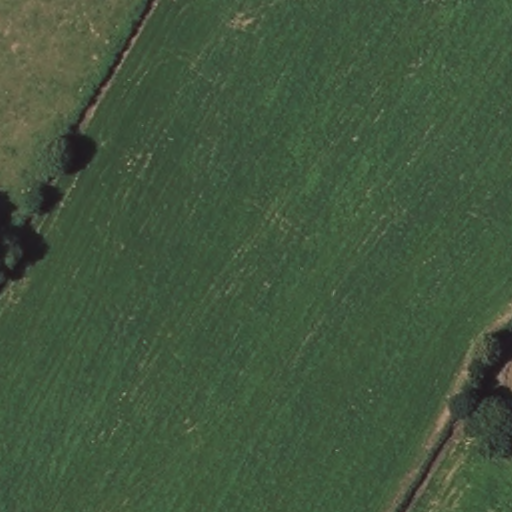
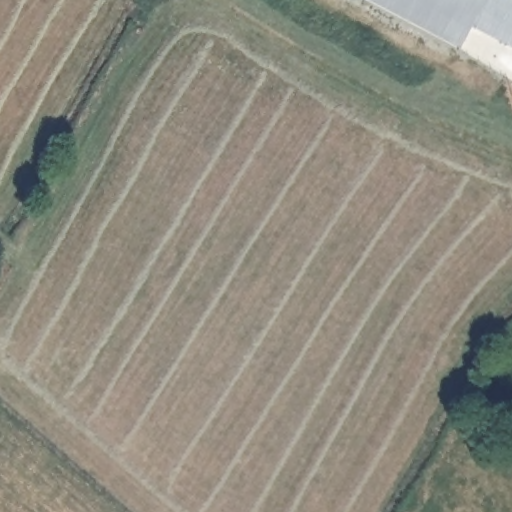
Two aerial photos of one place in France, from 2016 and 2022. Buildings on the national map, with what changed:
new [(471,27),(459,47),(369,0),(512,0),(512,47),(471,27)]

